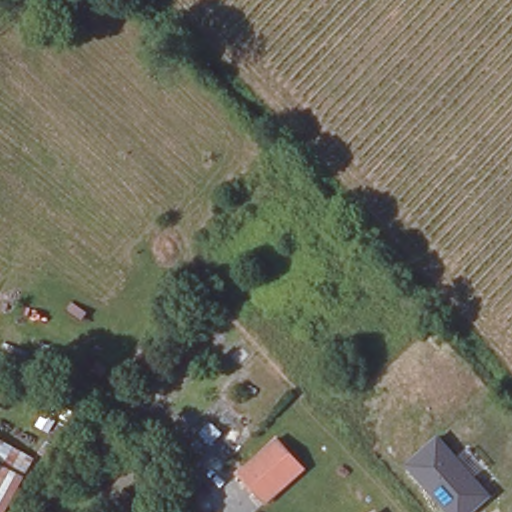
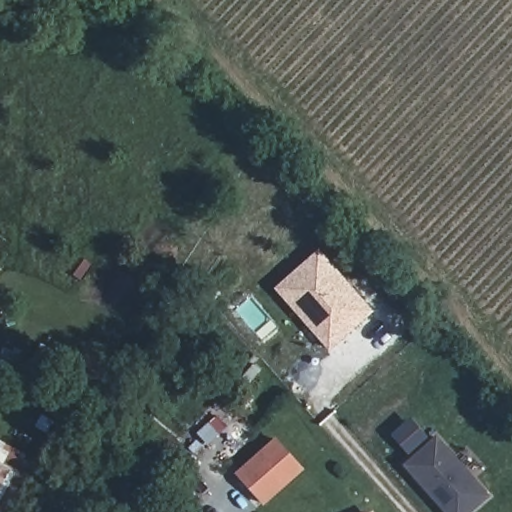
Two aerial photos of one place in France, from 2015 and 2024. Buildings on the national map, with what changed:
new [(321,248),(376,312),(331,352),(272,291),(321,248)]
unchanged [(471,512),(446,512),(403,464),(437,434),(492,494),(471,512)]
unchanged [(268,442),(300,474),(263,510),(230,478),(268,442)]
unchanged [(5,512),(0,512),(0,445),(31,463),(5,512)]

